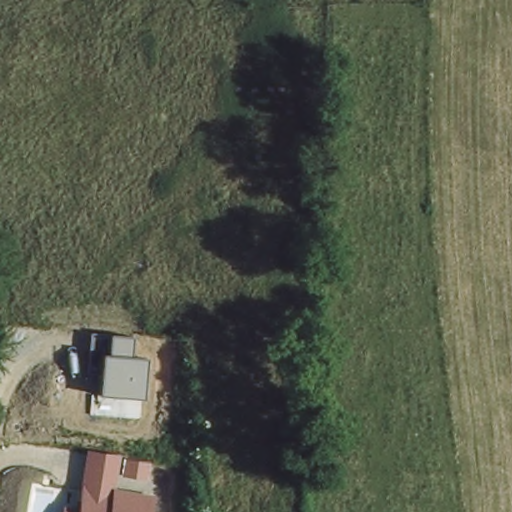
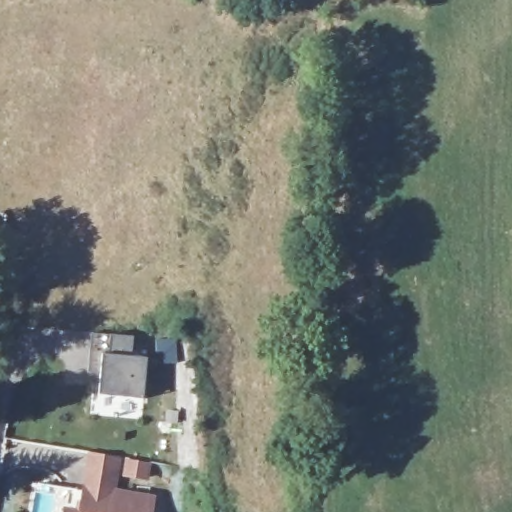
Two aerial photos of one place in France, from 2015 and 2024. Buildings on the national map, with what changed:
unchanged [(108,336),(132,337),(129,357),(147,357),(142,400),(99,396),(100,376),(86,373),(90,333),(108,336)]
unchanged [(121,456),(115,491),(157,497),(155,512),(63,512),(64,507),(78,510),(87,451),(121,456)]

